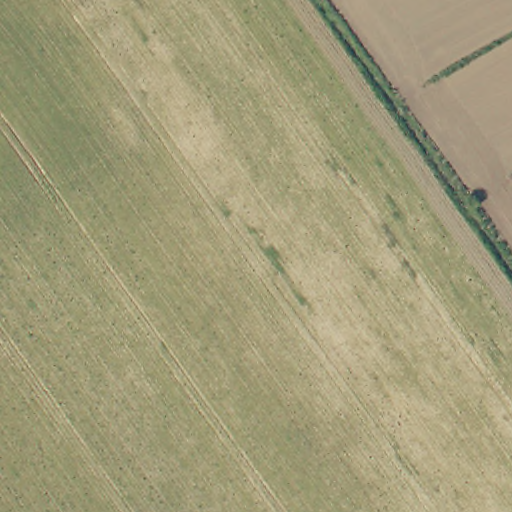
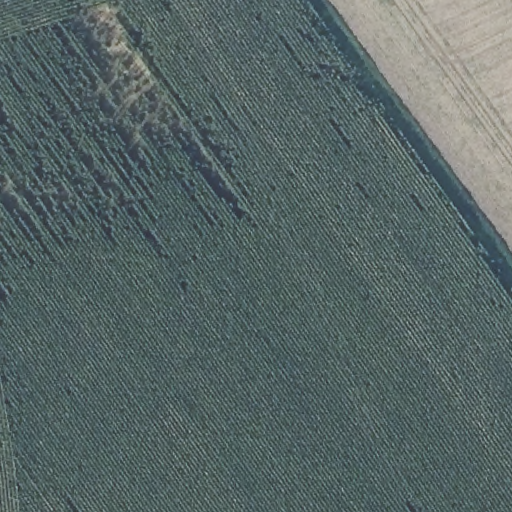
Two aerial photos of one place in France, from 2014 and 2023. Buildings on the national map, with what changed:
[]

